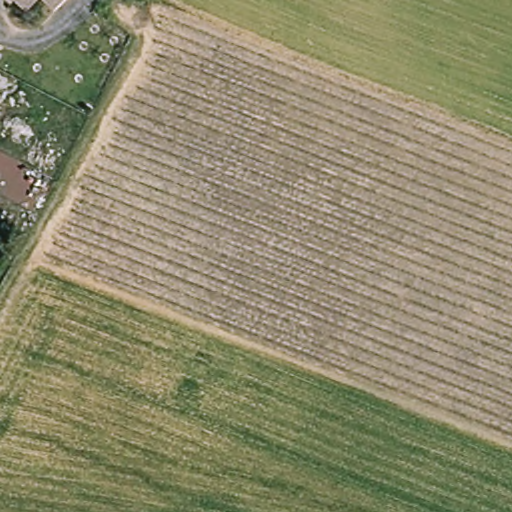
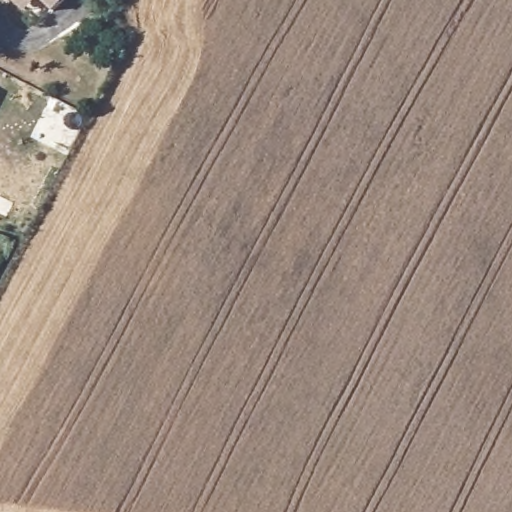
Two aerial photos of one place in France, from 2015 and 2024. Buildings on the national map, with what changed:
unchanged [(39,0),(38,1),(28,10),(18,0),(39,0)]
unchanged [(47,0),(72,0),(58,12),(47,0)]

